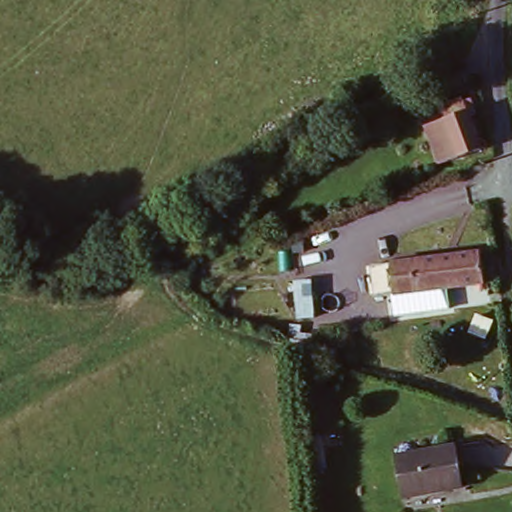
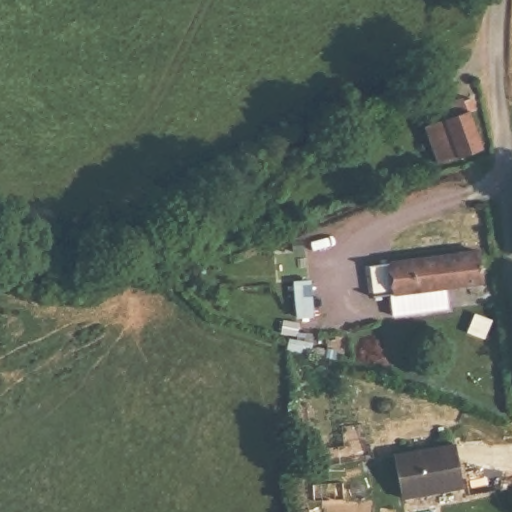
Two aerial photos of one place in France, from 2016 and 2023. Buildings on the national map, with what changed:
unchanged [(429,126),(450,119),(446,108),(467,99),(475,114),(488,150),(466,160),(459,145),(439,153),(429,126)]
unchanged [(377,270),(464,259),(477,258),(482,290),(468,293),(381,302),(377,270)]
unchanged [(454,445),(463,488),(403,498),(395,456),(454,445)]

